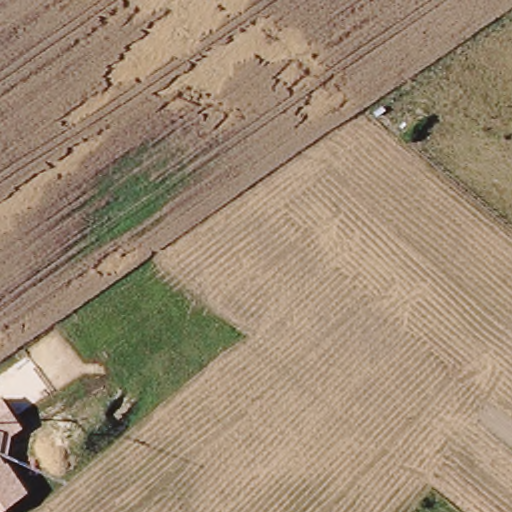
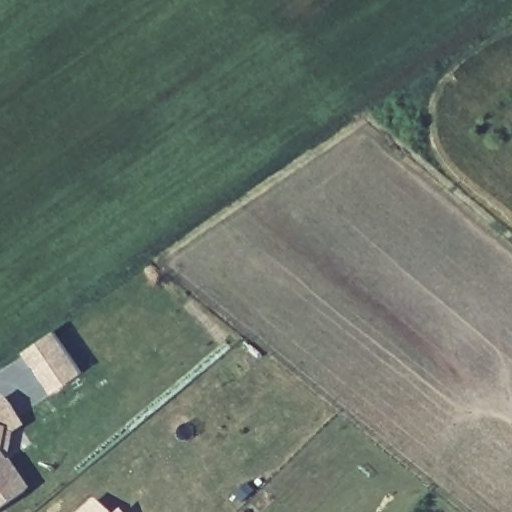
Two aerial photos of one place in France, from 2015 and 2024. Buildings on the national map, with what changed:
new [(56,330),(84,370),(54,393),(25,351),(56,330)]
unchanged [(25,492),(0,509),(0,398),(21,428),(9,435),(5,462),(25,492)]
new [(78,512),(90,500),(102,512),(78,512)]
new [(118,512),(115,512),(116,510),(118,512)]

